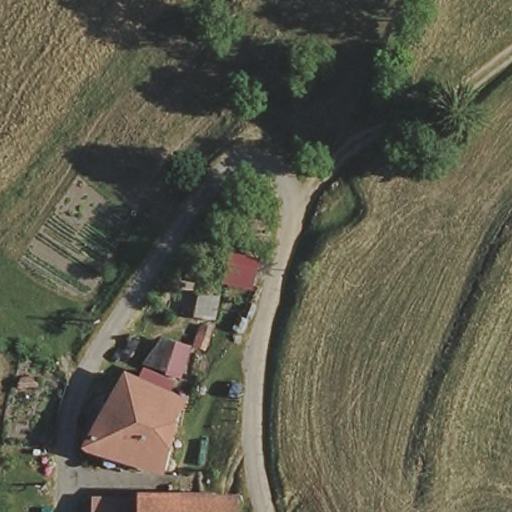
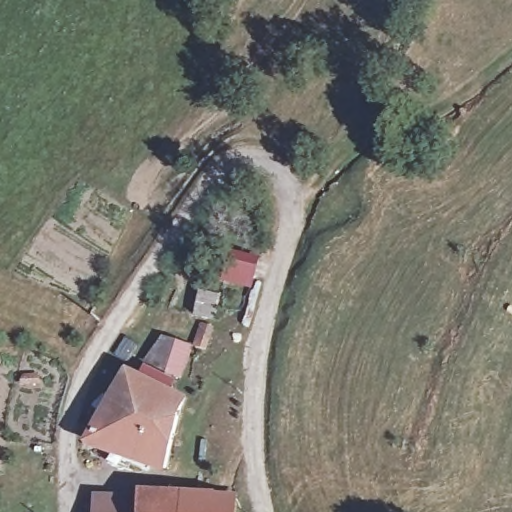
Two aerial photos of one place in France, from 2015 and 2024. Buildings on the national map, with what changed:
unchanged [(275,246),(266,276),(241,269),(250,239),(275,246)]
unchanged [(180,354),(170,383),(142,373),(154,344),(180,354)]
unchanged [(119,391),(131,397),(137,383),(162,394),(157,405),(176,414),(155,482),(90,454),(119,391)]
unchanged [(150,493),(236,494),(236,512),(100,512),(100,504),(150,506),(150,493)]

